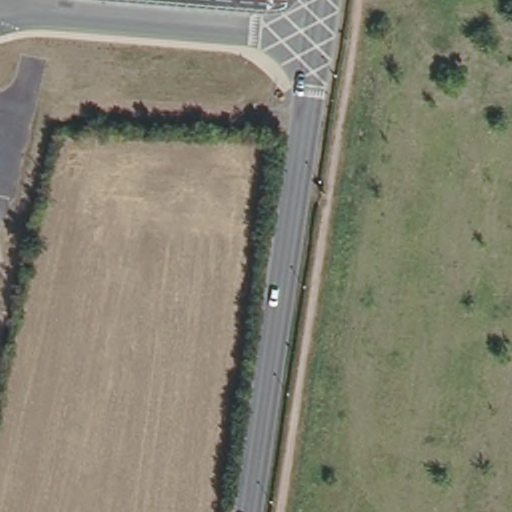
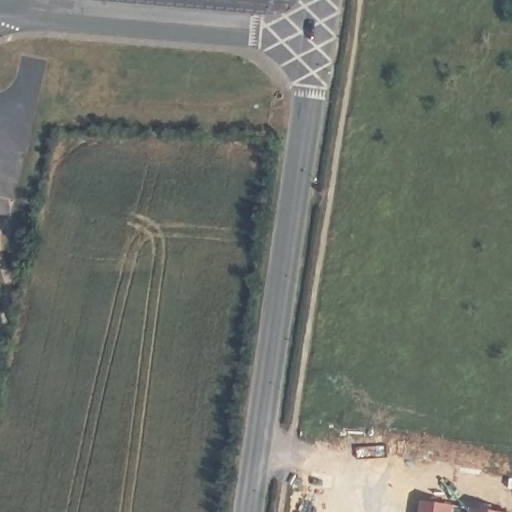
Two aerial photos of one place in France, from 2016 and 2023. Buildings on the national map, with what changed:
new [(498,512),(419,512),(421,501),(498,512)]

